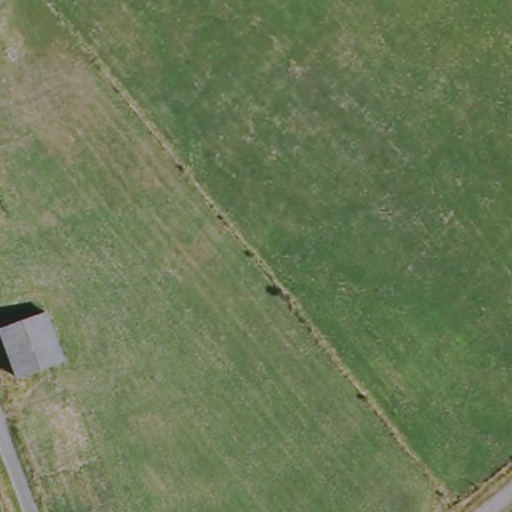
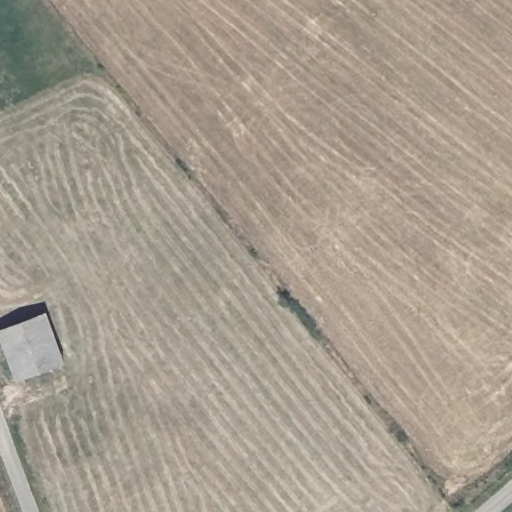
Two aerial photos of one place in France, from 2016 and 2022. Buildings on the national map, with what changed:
unchanged [(8,328),(54,313),(70,361),(23,378),(8,328)]

